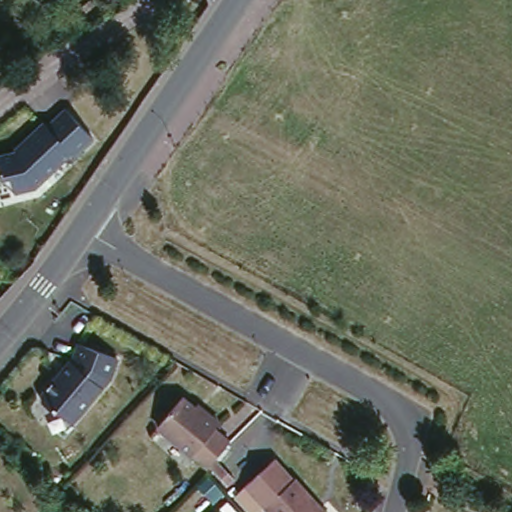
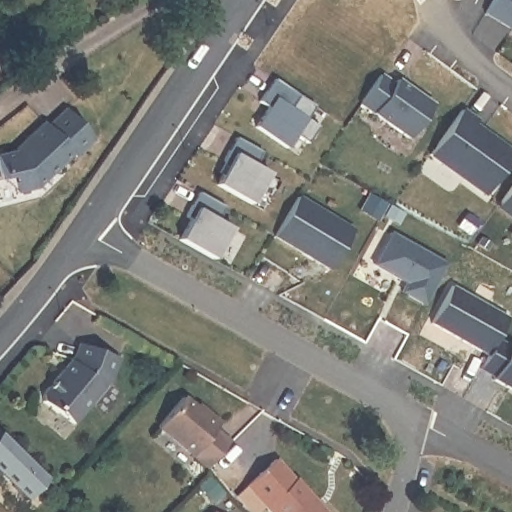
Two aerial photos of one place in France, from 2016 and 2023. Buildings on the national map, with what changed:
new [(511,29),(484,12),(491,0),(512,0),(512,28),(512,27),(511,29)]
new [(431,104),(407,137),(359,102),(380,73),(393,83),(396,78),(431,104)]
new [(305,117),(317,126),(306,142),(294,134),(284,147),(253,126),(267,107),(258,100),(274,78),(314,105),(305,117)]
unchanged [(93,139),(76,156),(70,153),(37,189),(12,196),(9,177),(0,179),(0,153),(14,151),(41,122),(47,126),(64,107),(93,139)]
new [(428,153),(460,108),(475,119),(472,123),(512,152),(512,154),(484,193),(428,153)]
new [(248,203),(214,184),(226,164),(221,161),(234,137),(260,151),(253,165),(266,172),(248,203)]
new [(220,175),(215,172),(221,161),(226,164),(220,175)]
new [(512,181),(512,213),(497,202),(512,181)]
new [(212,257),(178,238),(189,218),(184,215),(197,192),(223,206),(216,219),(229,227),(212,257)]
new [(328,268),(273,234),(297,195),(352,228),(328,268)]
new [(423,303),(400,290),(405,282),(372,263),(389,233),(445,263),(423,303)]
new [(507,316),(486,354),(429,322),(450,285),(507,316)]
new [(512,390),(491,378),(493,375),(479,367),(495,338),(512,348),(512,390)]
unchanged [(46,401),(78,363),(84,350),(123,364),(115,385),(77,430),(62,418),(60,420),(46,408),(46,401)]
unchanged [(162,433),(188,402),(206,416),(208,413),(224,427),(218,433),(233,444),(210,472),(162,433)]
unchanged [(327,512),(275,512),(250,483),(279,459),(327,512)]
unchanged [(212,511),(212,512),(210,512),(212,511)]

